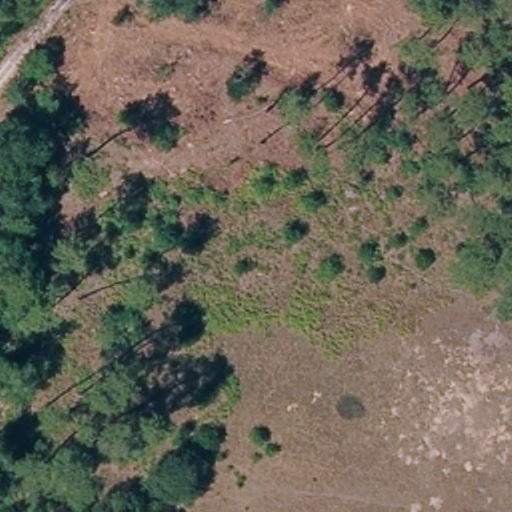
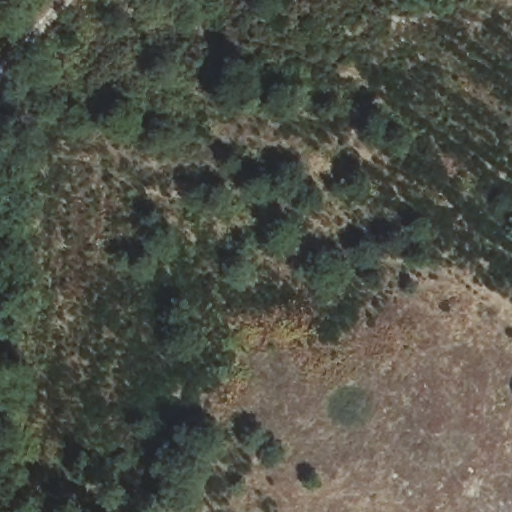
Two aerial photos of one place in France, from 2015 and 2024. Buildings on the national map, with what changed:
[]

